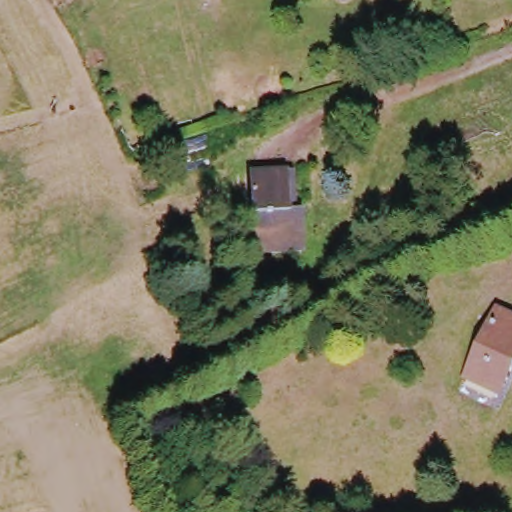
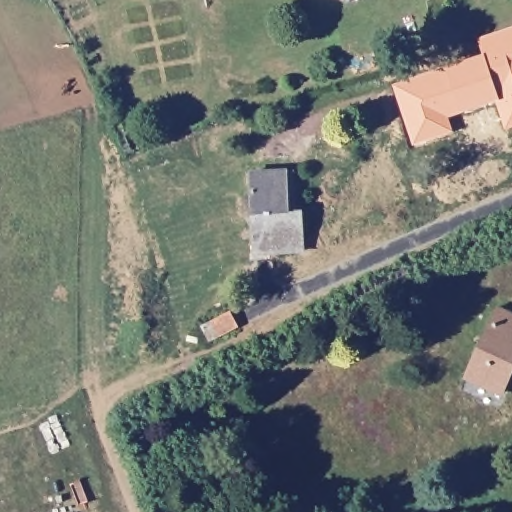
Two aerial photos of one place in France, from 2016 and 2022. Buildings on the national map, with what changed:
new [(476,40),(512,28),(512,126),(505,128),(496,100),(443,117),(447,131),(412,143),(395,90),(483,60),(476,40)]
unchanged [(256,173),(288,170),(292,210),(307,209),(308,250),(262,254),(256,173)]
unchanged [(503,308),(512,313),(512,374),(503,391),(470,375),(503,308)]
unchanged [(209,332),(237,318),(245,333),(217,348),(209,332)]

